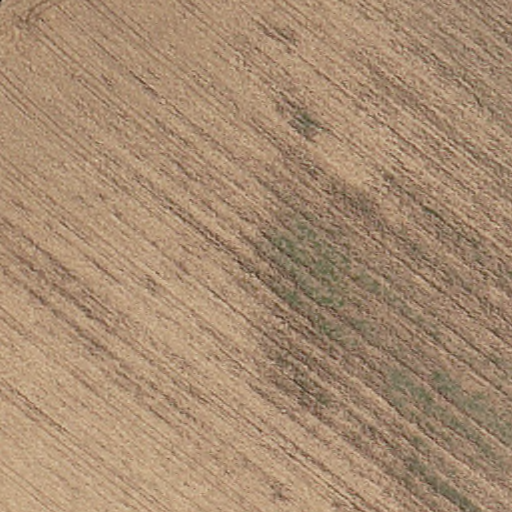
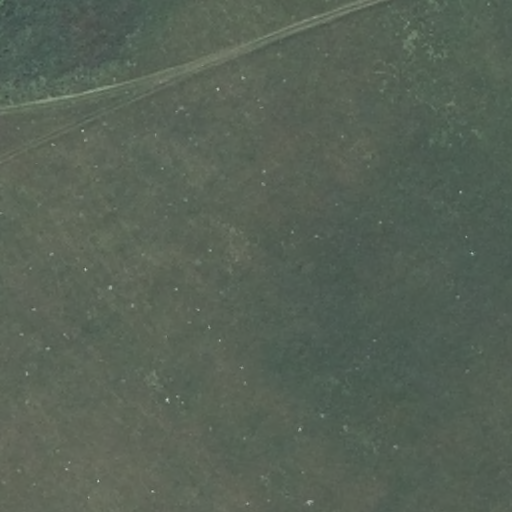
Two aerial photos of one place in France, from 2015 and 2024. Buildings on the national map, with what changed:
[]

